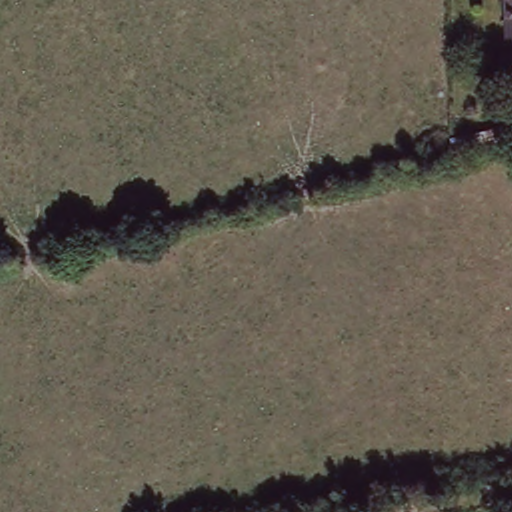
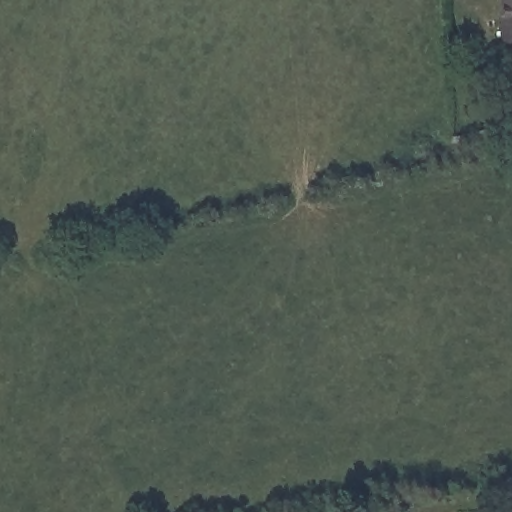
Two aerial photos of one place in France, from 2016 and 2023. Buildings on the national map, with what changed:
unchanged [(508,41),(507,0),(512,0),(512,40),(508,41)]
unchanged [(455,134),(492,125),(497,139),(459,147),(455,134)]

